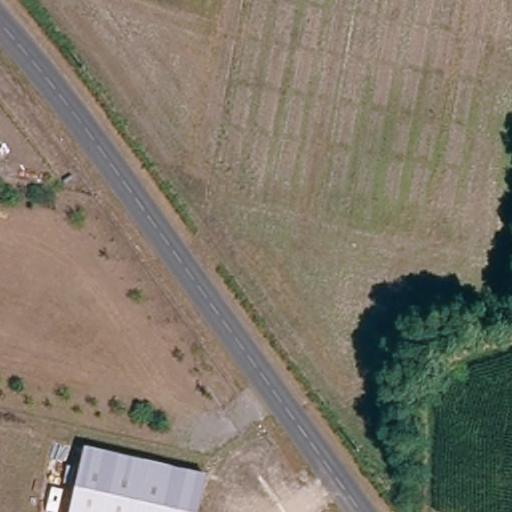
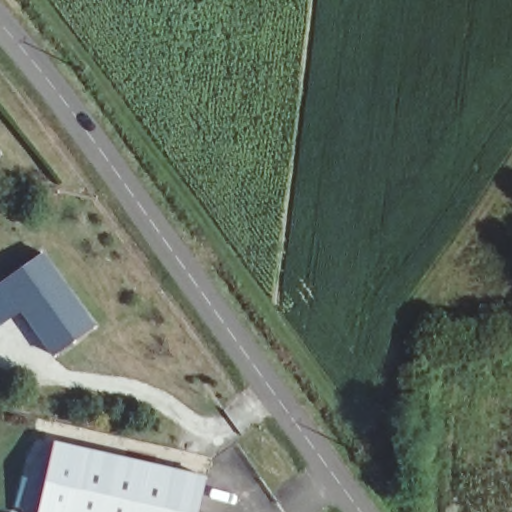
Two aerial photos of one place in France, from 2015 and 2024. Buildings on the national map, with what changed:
new [(43,250),(96,324),(50,356),(18,313),(0,326),(0,279),(43,250)]
new [(54,442),(84,453),(71,512),(39,512),(54,442)]
unchanged [(207,482),(200,512),(71,512),(84,453),(207,482)]

